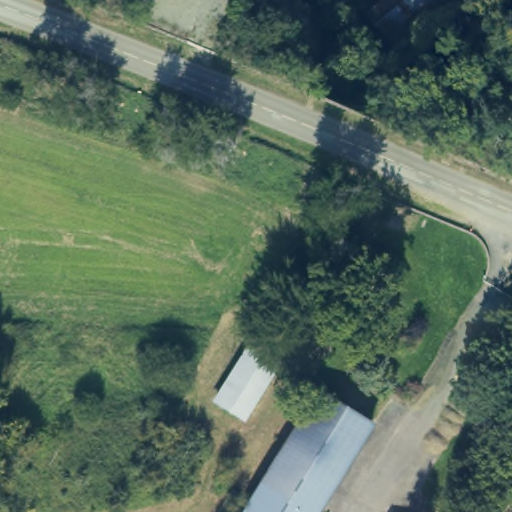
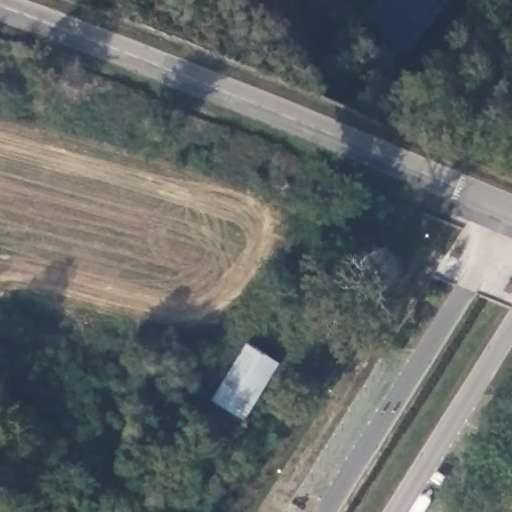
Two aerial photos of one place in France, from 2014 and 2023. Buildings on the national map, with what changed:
unchanged [(428,0),(438,0),(433,5),(428,0)]
unchanged [(243,352),(269,368),(234,420),(208,404),(243,352)]
demolished [(316,512),(243,512),(316,397),(368,428),(316,512)]

